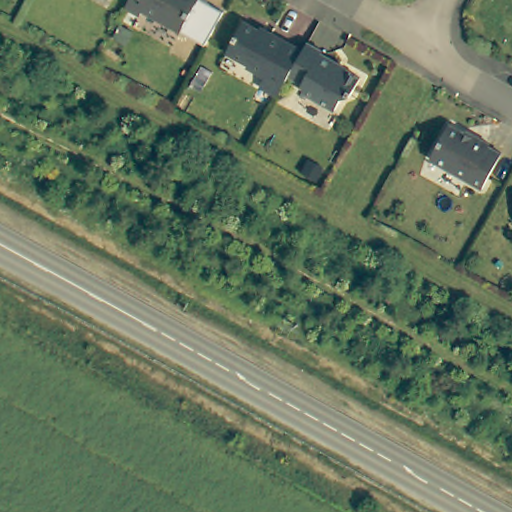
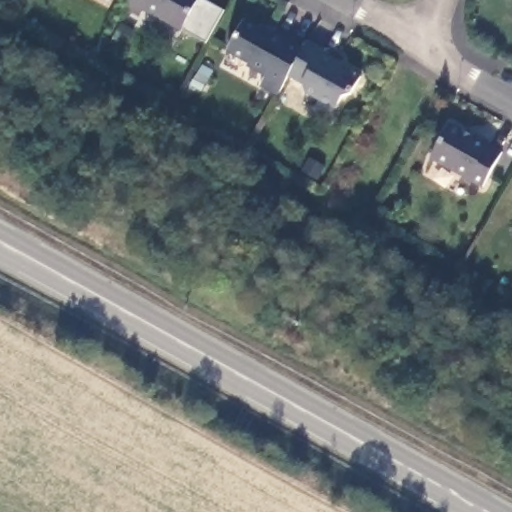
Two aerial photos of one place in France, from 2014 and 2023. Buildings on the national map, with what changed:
unchanged [(145,10),(142,15),(125,5),(127,0),(200,0),(183,30),(145,10)]
unchanged [(257,26),(259,22),(283,37),(300,46),(296,54),(286,72),(275,91),(258,81),(263,71),(245,61),(247,59),(225,47),(242,17),(257,26)]
unchanged [(320,44),(317,49),(335,57),(333,60),(357,74),(349,90),(341,94),(335,105),(316,96),(314,86),(286,72),(296,54),(300,46),(306,37),(320,44)]
unchanged [(486,145),(500,152),(482,185),(431,156),(450,125),(472,137),(475,132),(490,140),(486,145)]

